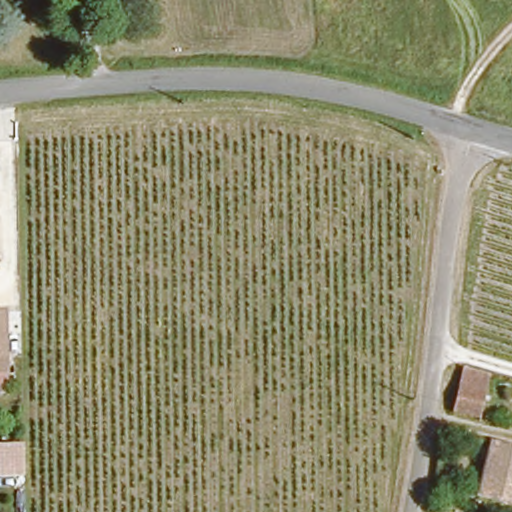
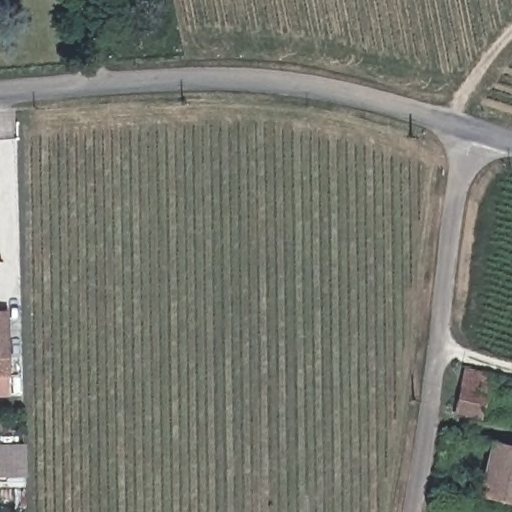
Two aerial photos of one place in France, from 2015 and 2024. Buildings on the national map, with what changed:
unchanged [(6,371),(0,372),(0,330),(5,330),(6,371)]
unchanged [(479,420),(450,413),(460,367),(491,375),(479,420)]
unchanged [(475,495),(488,441),(512,448),(512,505),(475,495)]
unchanged [(0,443),(18,443),(21,470),(0,470),(0,443)]

